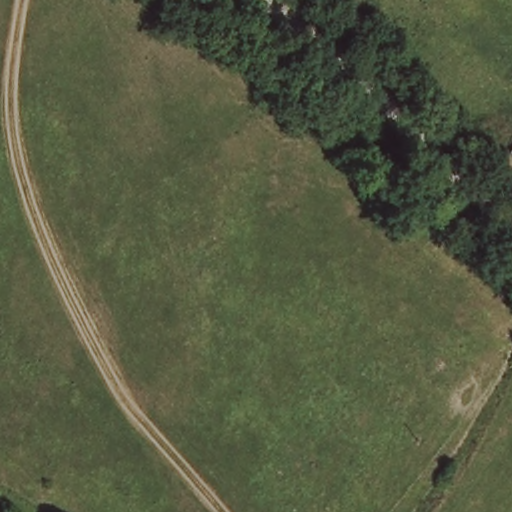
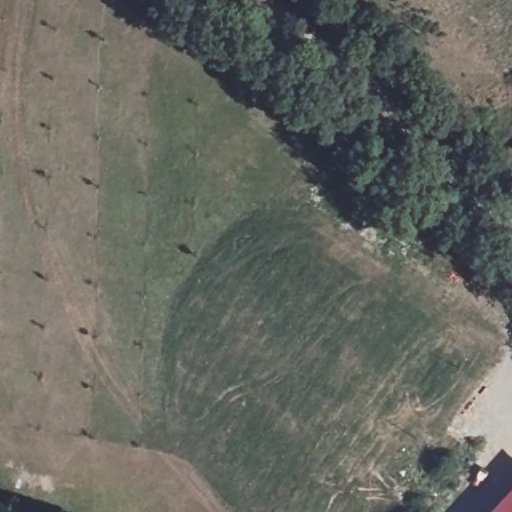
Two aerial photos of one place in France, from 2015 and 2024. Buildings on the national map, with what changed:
new [(512,489),(512,512),(490,512),(512,489)]

